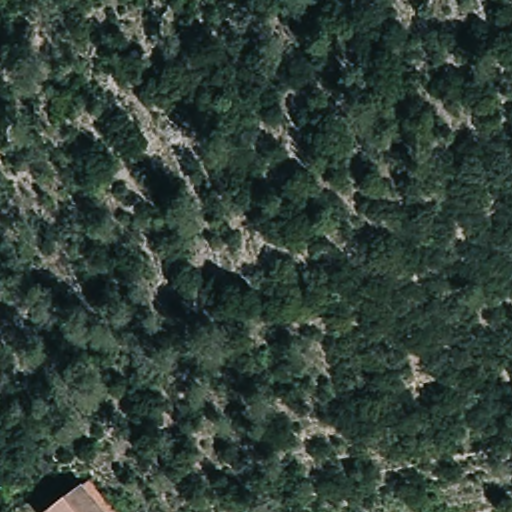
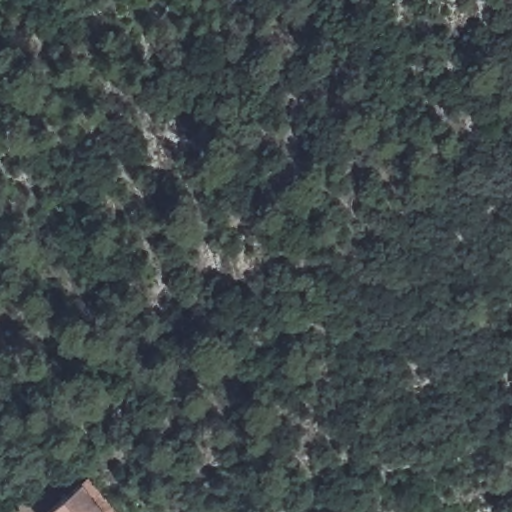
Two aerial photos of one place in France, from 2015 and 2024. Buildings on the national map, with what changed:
unchanged [(87,487),(106,512),(55,512),(87,487)]

